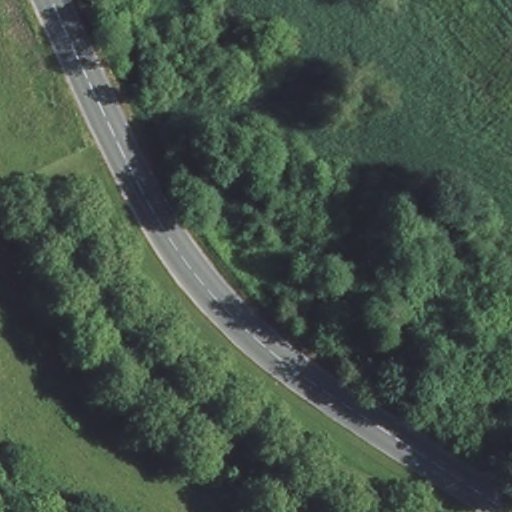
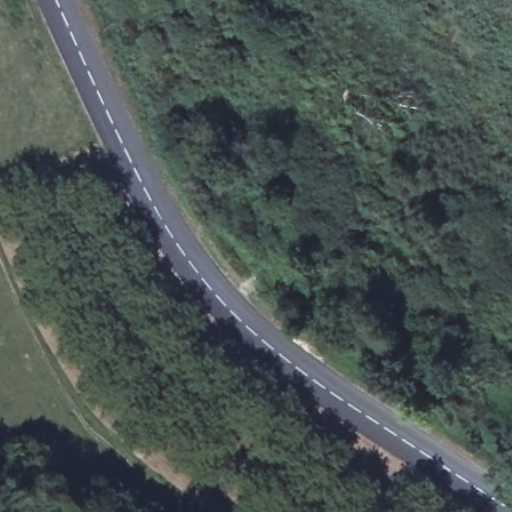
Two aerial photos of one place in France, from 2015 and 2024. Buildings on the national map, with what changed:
[]

